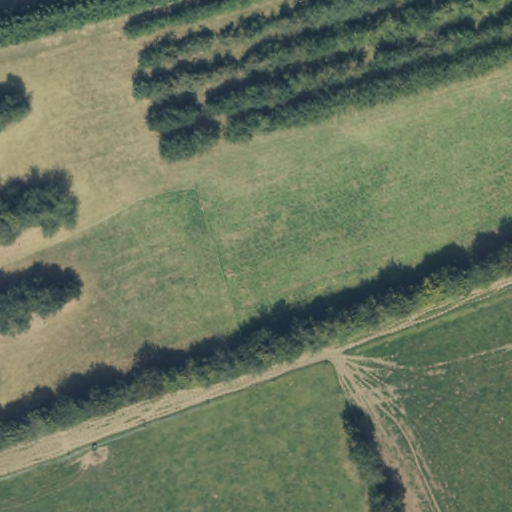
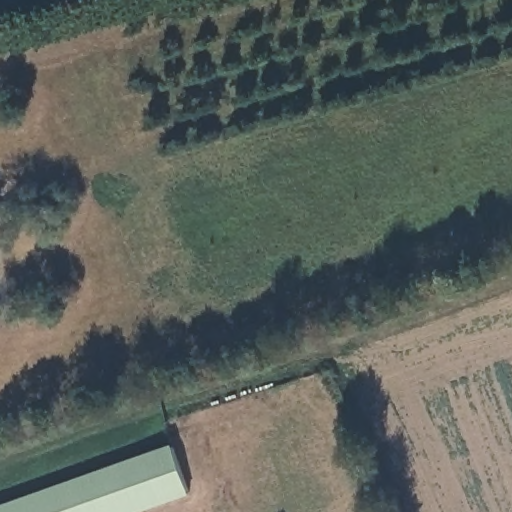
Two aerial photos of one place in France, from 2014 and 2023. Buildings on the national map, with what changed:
new [(190,495),(141,512),(0,512),(0,506),(171,445),(190,495)]

